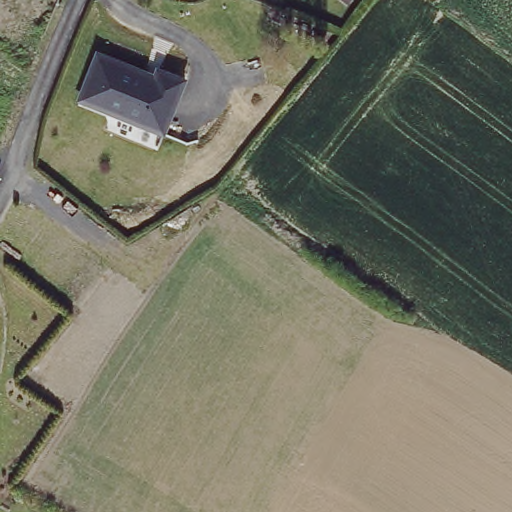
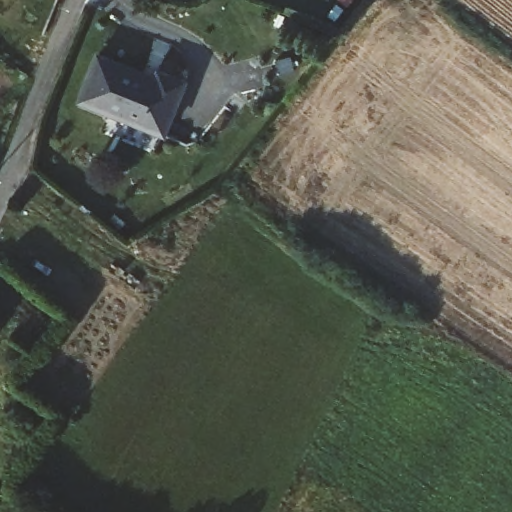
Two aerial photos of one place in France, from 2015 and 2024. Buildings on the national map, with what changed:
unchanged [(50,6),(45,0),(54,0),(50,6)]
unchanged [(75,99),(95,44),(153,68),(155,63),(186,74),(162,131),(75,99)]

